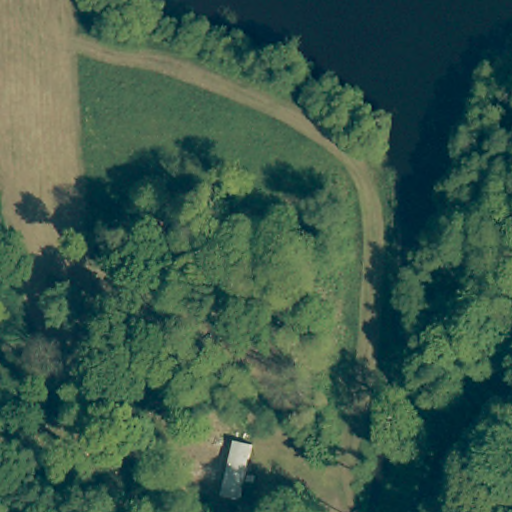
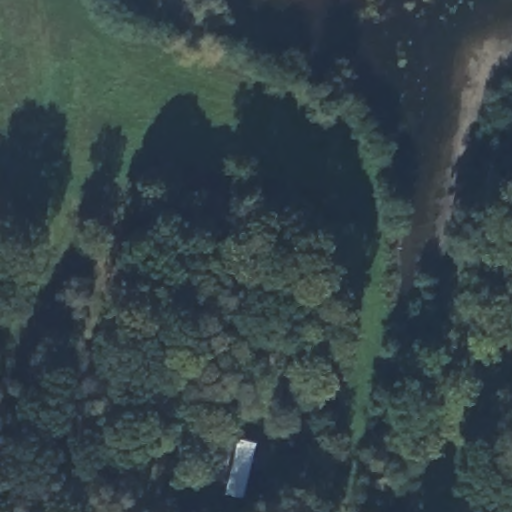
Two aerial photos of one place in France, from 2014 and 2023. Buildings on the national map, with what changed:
unchanged [(188,466),(195,440),(228,446),(222,473),(188,466)]

